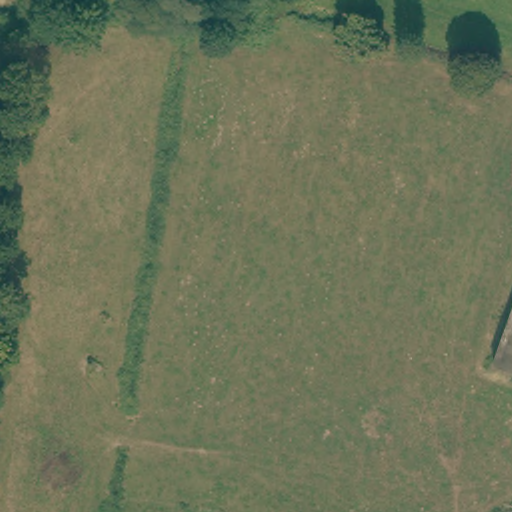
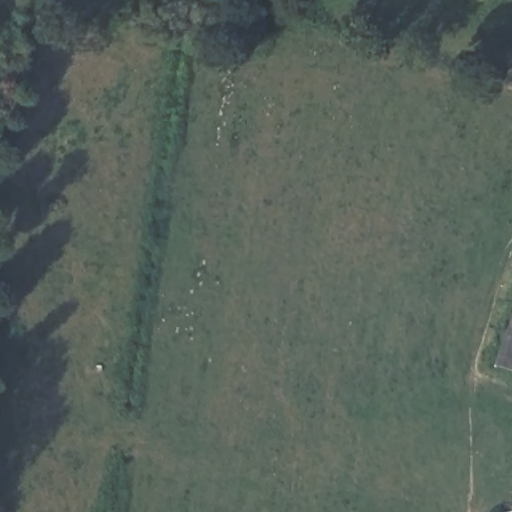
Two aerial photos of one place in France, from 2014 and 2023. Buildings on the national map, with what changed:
unchanged [(512,319),(512,370),(496,365),(512,319)]

